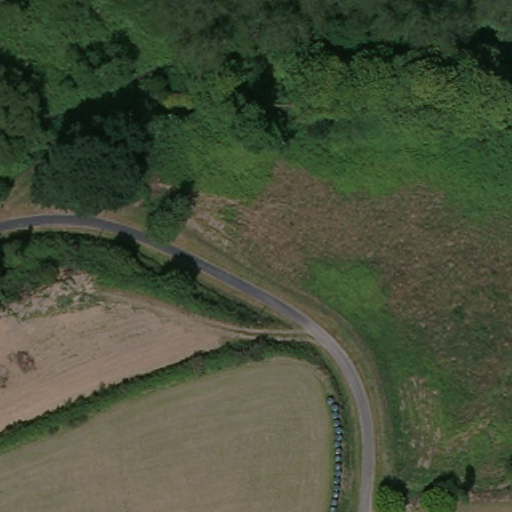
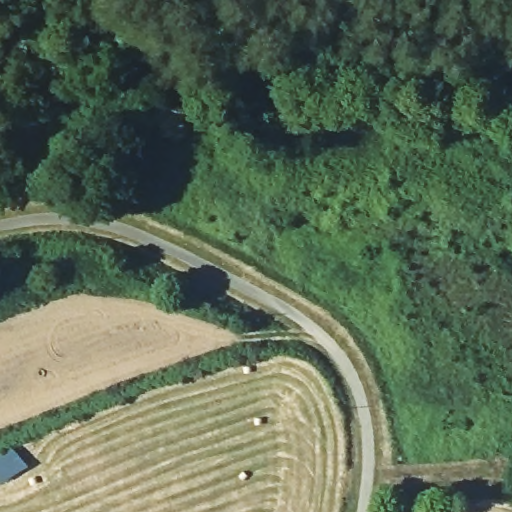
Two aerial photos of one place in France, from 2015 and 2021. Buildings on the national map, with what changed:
[]

